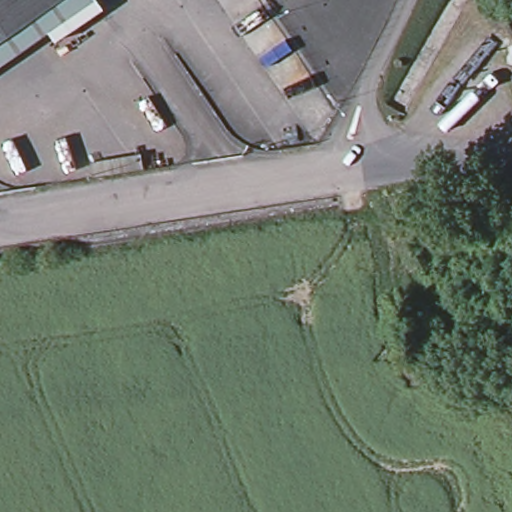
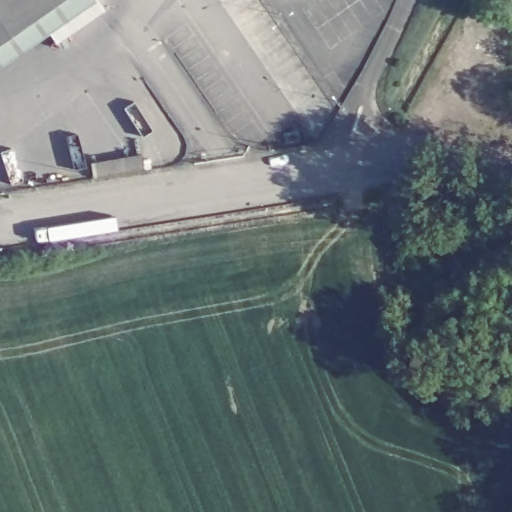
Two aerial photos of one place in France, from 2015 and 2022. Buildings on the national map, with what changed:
unchanged [(0,0),(57,0),(0,39),(0,0)]

